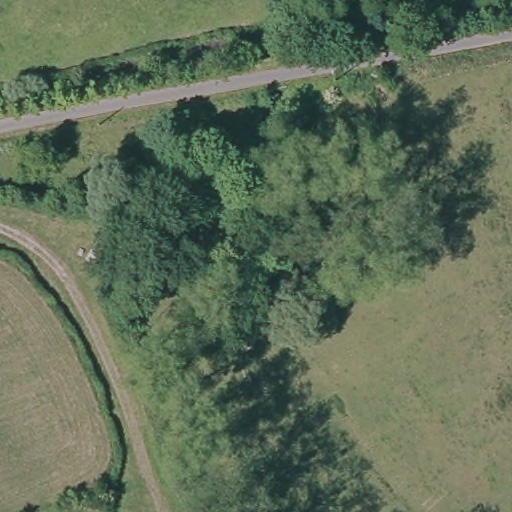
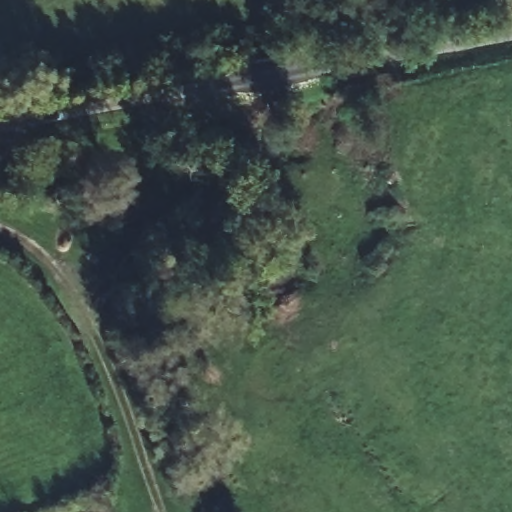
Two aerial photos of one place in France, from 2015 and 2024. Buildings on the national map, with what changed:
[]

